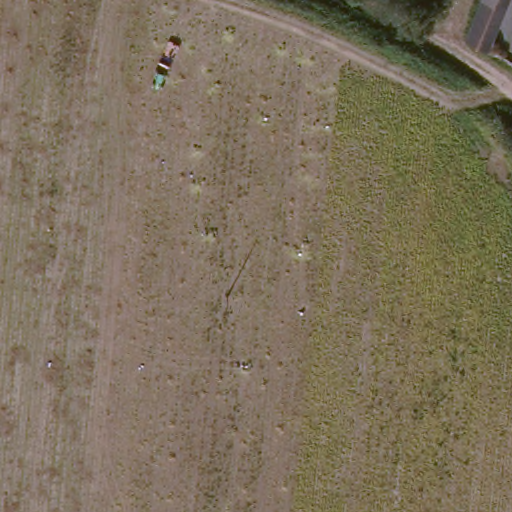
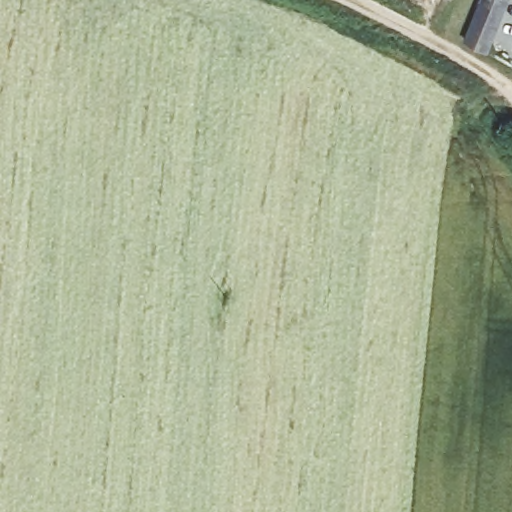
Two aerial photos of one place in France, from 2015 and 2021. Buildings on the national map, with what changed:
unchanged [(489,0),(512,0),(512,15),(498,52),(473,39),(489,0)]

